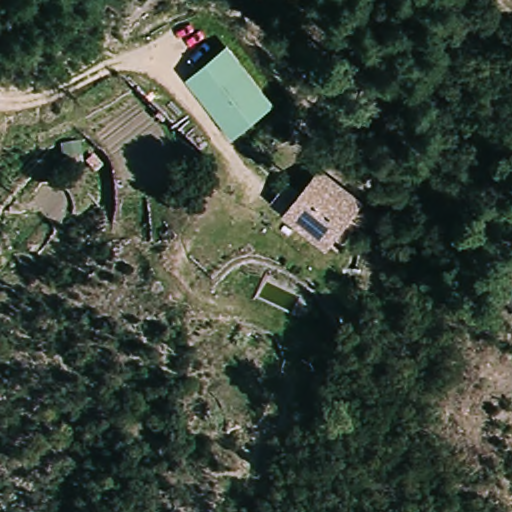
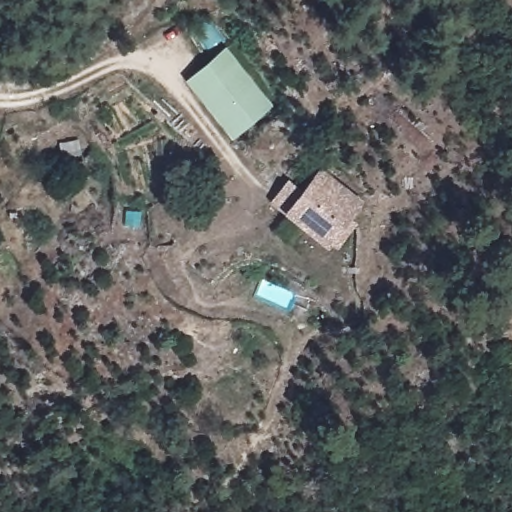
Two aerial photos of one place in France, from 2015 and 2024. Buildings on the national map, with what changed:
unchanged [(236,139),(190,81),(228,46),(275,103),(236,139)]
unchanged [(328,248),(276,202),(292,177),(306,187),(322,167),(368,201),(328,248)]

